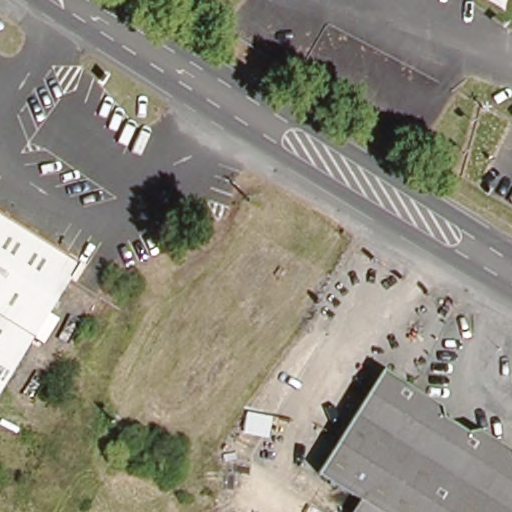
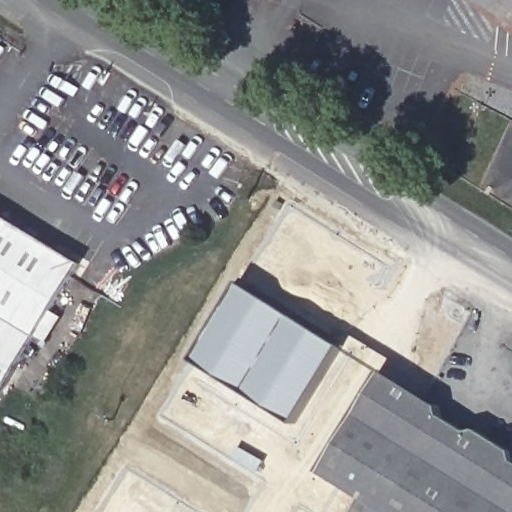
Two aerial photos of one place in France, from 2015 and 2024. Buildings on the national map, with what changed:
unchanged [(50,244),(55,235),(88,255),(77,272),(67,267),(0,378),(0,212),(50,244)]
new [(191,360),(240,282),(342,345),(294,425),(191,360)]
unchanged [(467,429),(483,426),(512,445),(512,512),(390,512),(322,469),(387,366),(442,402),(442,413),(467,429)]
new [(390,512),(352,512),(363,495),(390,512)]

